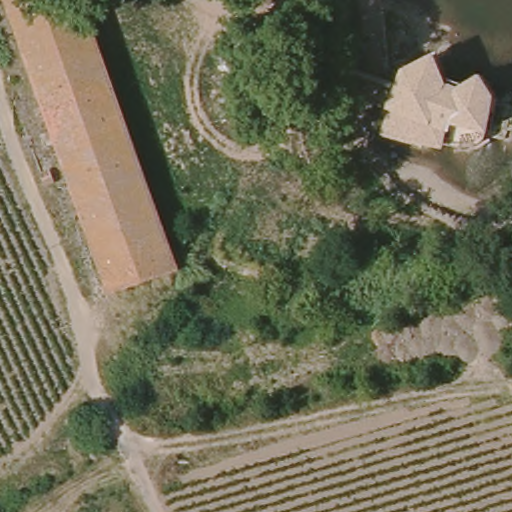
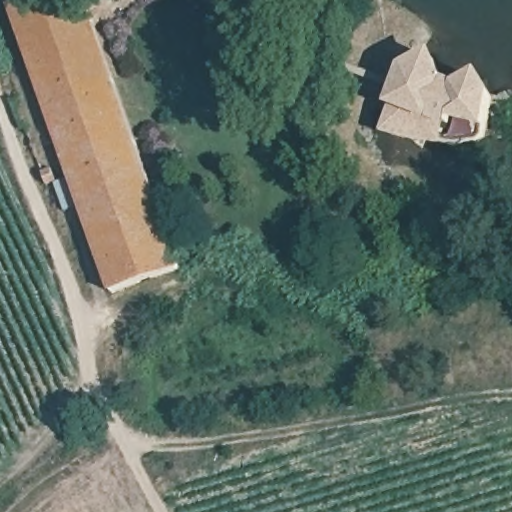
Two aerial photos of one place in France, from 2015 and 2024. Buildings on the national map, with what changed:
unchanged [(181,263),(109,286),(14,0),(93,0),(131,110),(181,263)]
unchanged [(484,143),(452,145),(393,130),(399,103),(396,97),(399,92),(404,77),(409,69),(415,62),(422,56),(430,51),(439,47),(444,55),(451,80),(468,84),(485,71),(502,91),(484,143)]
unchanged [(60,181),(44,187),(40,174),(55,169),(60,181)]

